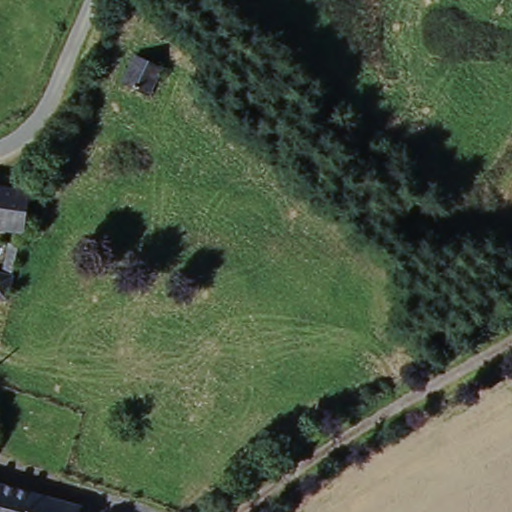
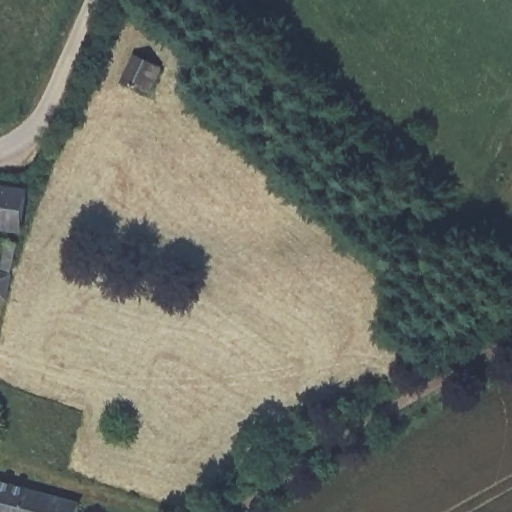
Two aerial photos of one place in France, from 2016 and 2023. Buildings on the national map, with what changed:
unchanged [(169,72),(158,97),(125,84),(136,59),(169,72)]
unchanged [(24,203),(16,230),(0,225),(0,196),(24,203)]
unchanged [(14,259),(0,310),(0,271),(4,256),(14,259)]
unchanged [(75,506),(74,512),(0,512),(0,485),(75,506)]

